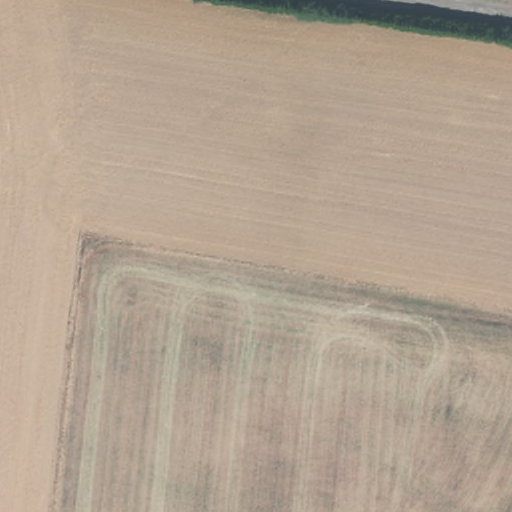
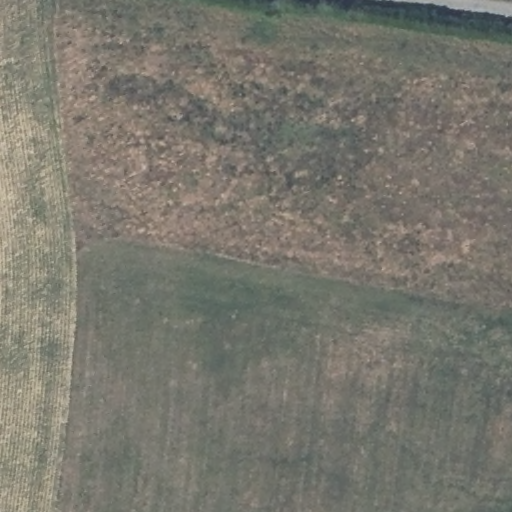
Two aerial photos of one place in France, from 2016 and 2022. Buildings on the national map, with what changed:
unchanged [(512,0),(512,6),(455,0),(512,0)]

